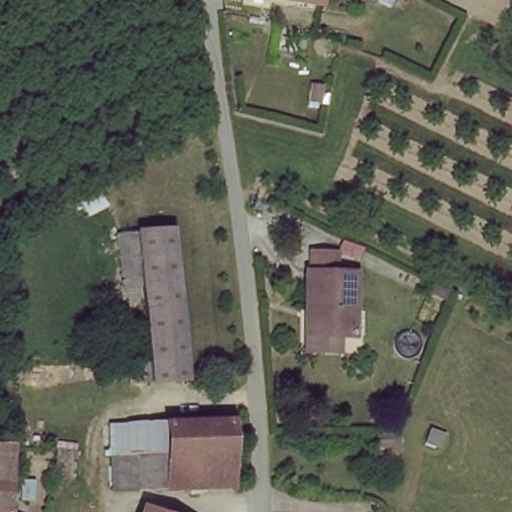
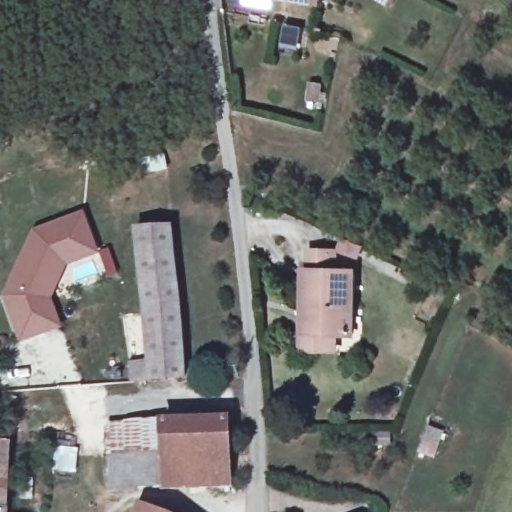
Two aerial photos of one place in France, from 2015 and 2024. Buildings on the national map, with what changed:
unchanged [(393,8),(377,0),(397,0),(393,8)]
new [(93,245),(46,261),(35,286),(39,297),(32,299),(42,329),(18,337),(3,294),(35,227),(82,211),(93,245)]
unchanged [(137,381),(135,232),(171,230),(175,381),(137,381)]
new [(32,299),(39,297),(35,286),(46,261),(93,245),(95,249),(63,261),(47,296),(57,323),(42,329),(32,299)]
unchanged [(305,347),(306,330),(306,269),(355,270),(353,332),(337,331),(336,348),(305,347)]
unchanged [(223,418),(225,485),(110,486),(111,420),(223,418)]
unchanged [(6,464),(8,464),(30,470),(20,497),(15,512),(0,512),(0,463),(6,464)]
unchanged [(143,512),(122,512),(125,504),(143,512)]

